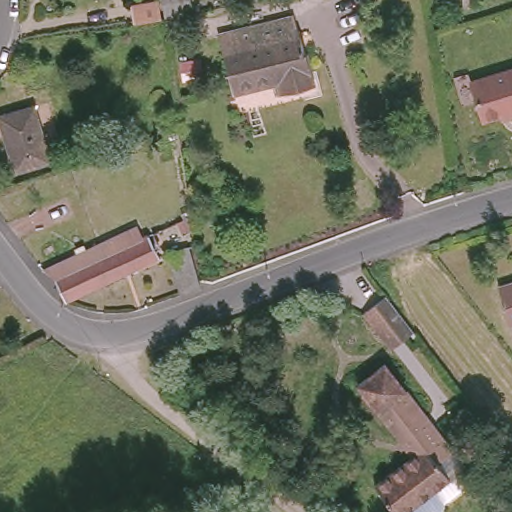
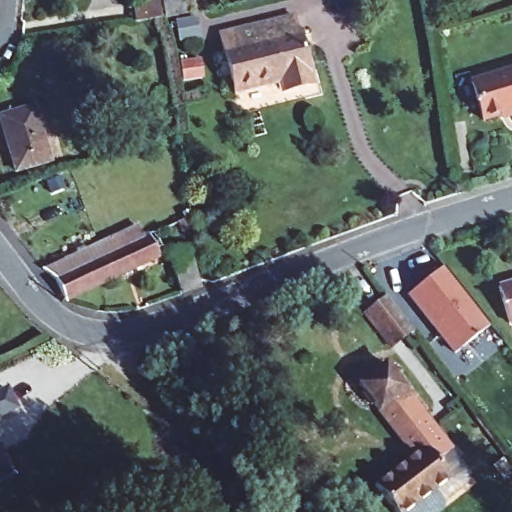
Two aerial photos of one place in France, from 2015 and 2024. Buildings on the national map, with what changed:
unchanged [(136,5),(164,0),(167,20),(140,24),(136,5)]
unchanged [(195,17),(196,29),(171,32),(167,0),(196,0),(198,17),(195,17)]
unchanged [(287,83),(284,71),(240,82),(230,41),(226,26),(246,22),(249,37),(258,34),(255,18),(298,7),(315,77),(287,83)]
unchanged [(512,116),(511,116),(510,112),(480,121),(468,82),(512,69),(512,116)]
unchanged [(45,154),(12,163),(1,126),(0,120),(0,106),(5,105),(30,98),(45,154)]
unchanged [(52,273),(50,271),(43,265),(137,221),(142,232),(148,229),(152,237),(156,246),(151,249),(155,256),(67,297),(56,277),(52,273)]
unchanged [(199,281),(180,287),(168,247),(187,241),(199,281)]
new [(406,296),(443,267),(490,327),(453,356),(406,296)]
unchanged [(512,325),(510,325),(500,289),(512,285),(512,325)]
unchanged [(392,347),(386,339),(368,317),(365,312),(386,296),(407,322),(413,330),(392,347)]
unchanged [(471,469),(467,479),(446,496),(447,506),(439,512),(401,512),(376,482),(415,451),(358,381),(384,360),(451,445),(471,469)]
new [(5,390),(13,408),(0,415),(0,392),(5,390)]
new [(6,473),(0,476),(0,461),(6,473)]

